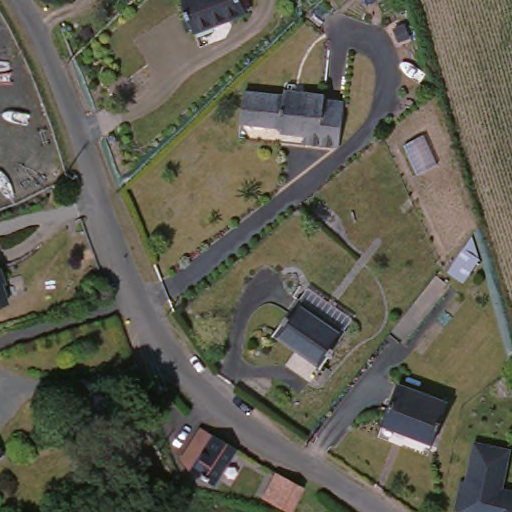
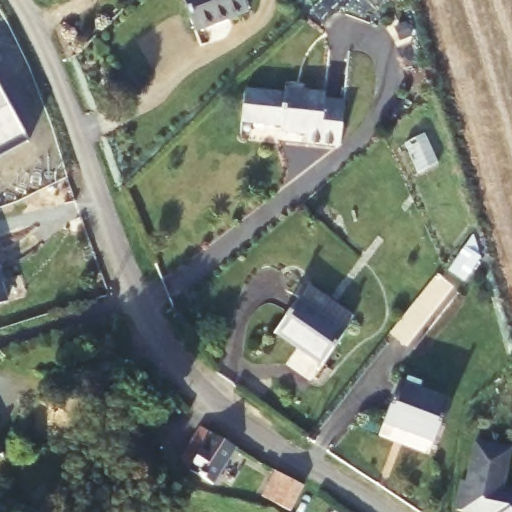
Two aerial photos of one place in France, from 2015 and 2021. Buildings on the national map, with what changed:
unchanged [(189,0),(239,0),(247,21),(195,41),(182,3),(189,0)]
new [(0,159),(0,83),(32,142),(0,159)]
unchanged [(236,100),(275,105),(275,100),(315,104),(315,109),(335,111),(330,156),(294,152),(295,143),(271,140),(272,136),(232,131),(236,100)]
unchanged [(465,248),(480,258),(465,283),(448,272),(465,248)]
unchanged [(0,305),(0,282),(7,304),(0,305)]
unchanged [(308,297),(352,326),(343,339),(345,340),(322,374),(276,343),(308,297)]
unchanged [(401,388),(448,406),(433,446),(385,428),(401,388)]
unchanged [(241,461),(219,496),(195,480),(199,473),(189,466),(206,439),(241,461)]
unchanged [(0,473),(0,442),(13,466),(0,473)]
unchanged [(502,501),(512,503),(512,512),(458,512),(461,493),(467,494),(476,455),(510,461),(502,501)]
unchanged [(277,512),(270,508),(270,506),(257,499),(270,476),(283,483),(299,492),(288,512),(277,512)]

